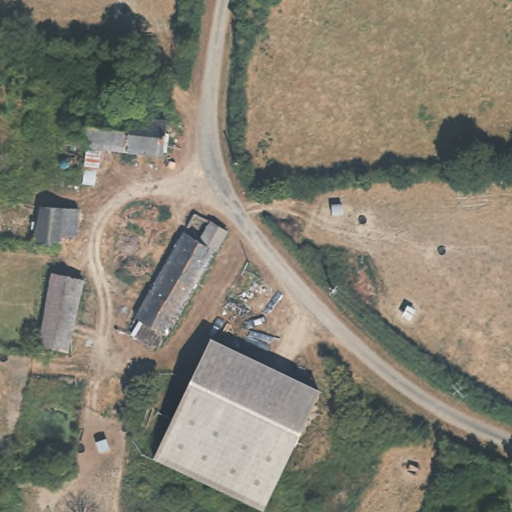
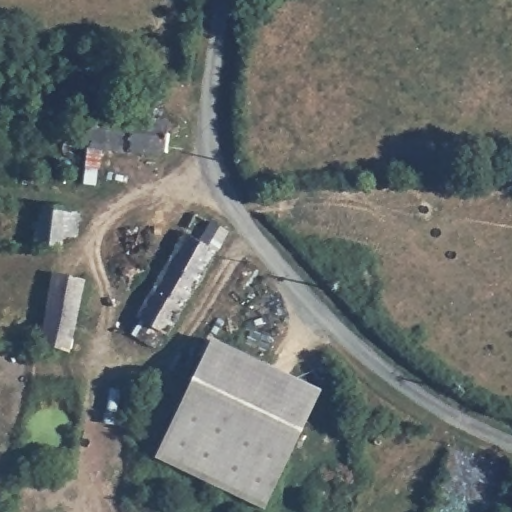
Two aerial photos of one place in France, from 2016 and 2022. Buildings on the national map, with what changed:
unchanged [(130,107),(127,107),(129,110),(130,113),(130,117),(130,121),(164,125),(160,158),(96,151),(94,170),(86,169),(91,115),(113,117),(117,107),(124,107),(130,107)]
unchanged [(77,206),(72,232),(58,231),(57,243),(51,243),(33,242),(37,204),(77,206)]
unchanged [(185,225),(201,234),(210,217),(225,225),(171,328),(167,327),(158,341),(136,327),(142,316),(138,313),(185,225)]
unchanged [(76,277),(68,349),(36,345),(45,274),(76,277)]
unchanged [(317,396),(299,436),(265,512),(257,512),(153,466),(166,438),(207,347),(317,396)]

